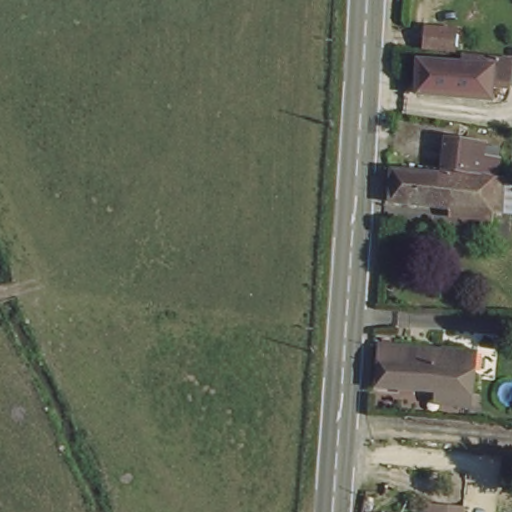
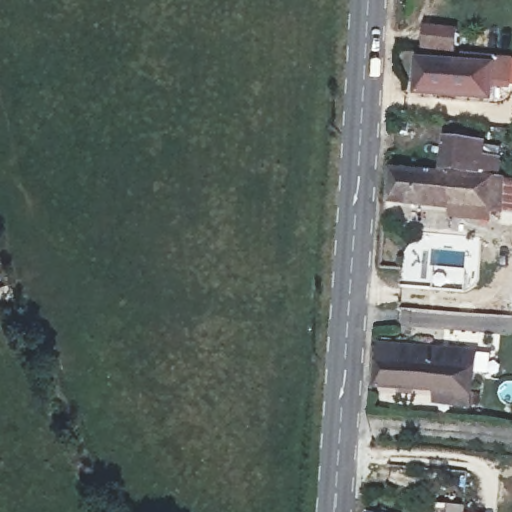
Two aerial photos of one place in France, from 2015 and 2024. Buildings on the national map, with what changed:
unchanged [(423,25),(456,28),(453,59),(421,56),(423,25)]
unchanged [(412,104),(414,76),(463,78),(466,60),(500,63),(512,64),(512,76),(499,74),(496,109),(412,104)]
unchanged [(440,155),(475,159),(475,176),(507,178),(505,192),(439,183),(440,155)]
unchanged [(502,233),(471,231),(471,215),(389,207),(392,177),(439,183),(505,192),(502,233)]
unchanged [(474,360),(469,409),(423,404),(423,385),(374,380),(376,350),(474,360)]

